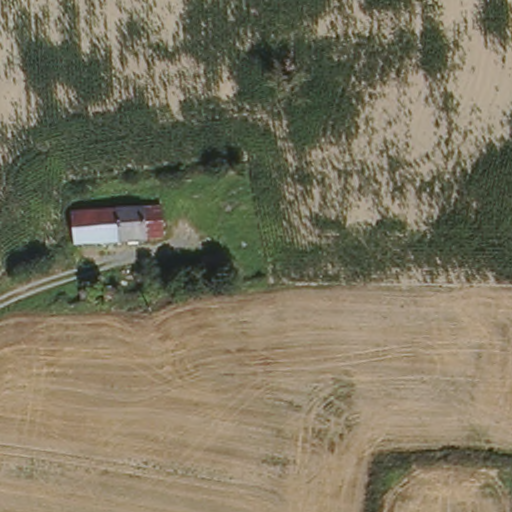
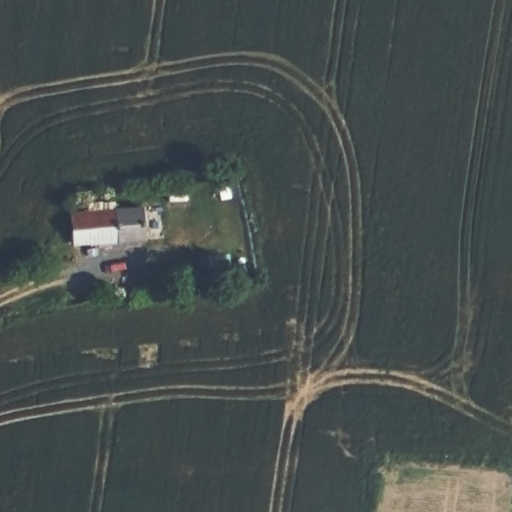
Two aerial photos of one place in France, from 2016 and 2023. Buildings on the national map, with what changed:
unchanged [(162,204),(166,244),(71,250),(67,212),(162,204)]
unchanged [(197,281),(197,269),(204,268),(204,258),(226,257),(231,277),(197,281)]

